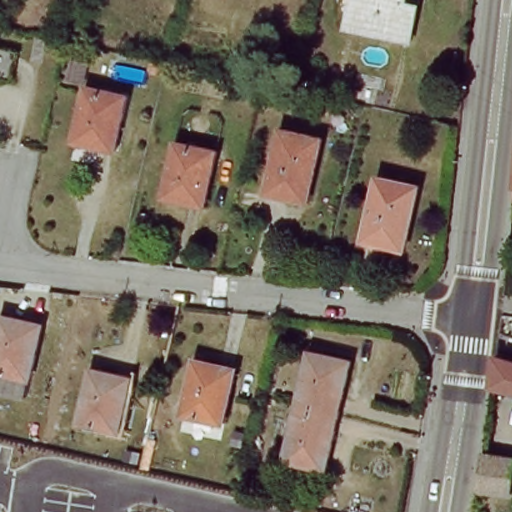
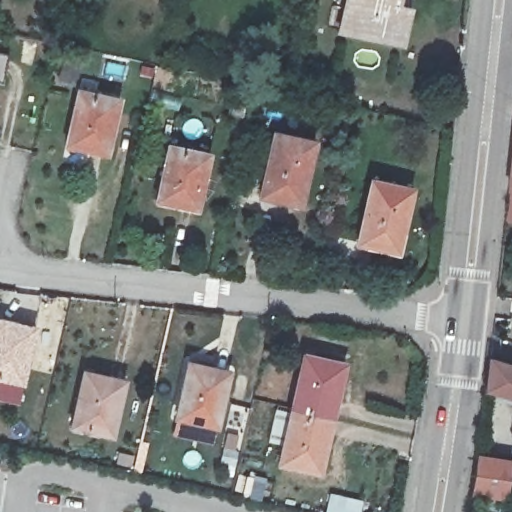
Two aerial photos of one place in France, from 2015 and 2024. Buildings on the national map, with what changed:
unchanged [(356,0),(403,0),(399,19),(410,22),(405,44),(338,30),(343,8),(353,10),(356,0)]
unchanged [(122,99),(107,166),(62,155),(78,89),(122,99)]
unchanged [(315,144),(303,207),(262,199),(275,135),(315,144)]
unchanged [(215,158),(201,216),(158,205),(172,148),(215,158)]
unchanged [(408,255),(355,246),(367,177),(421,185),(408,255)]
unchanged [(512,194),(512,203),(511,203),(512,194)]
unchanged [(20,389),(0,383),(0,310),(37,321),(20,389)]
unchanged [(235,368),(218,438),(177,428),(195,357),(235,368)]
unchanged [(293,416),(294,413),(305,357),(348,366),(336,424),(336,425),(293,416)]
unchanged [(491,393),(495,360),(512,366),(512,398),(491,393)]
unchanged [(125,378),(110,438),(68,428),(84,367),(125,378)]
unchanged [(336,425),(325,480),(282,470),(293,416),(336,425)]
unchanged [(512,507),(478,502),(482,455),(512,459),(512,502),(512,507)]

